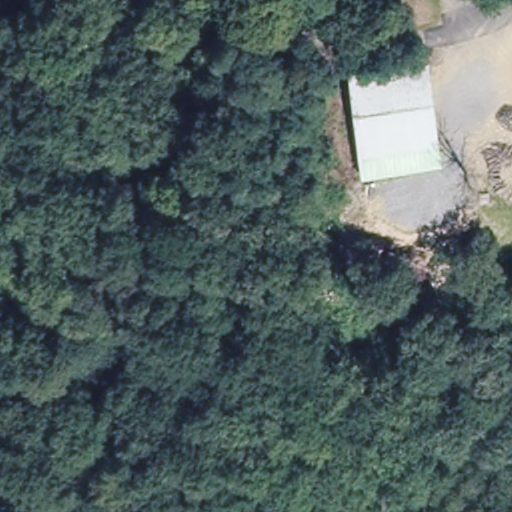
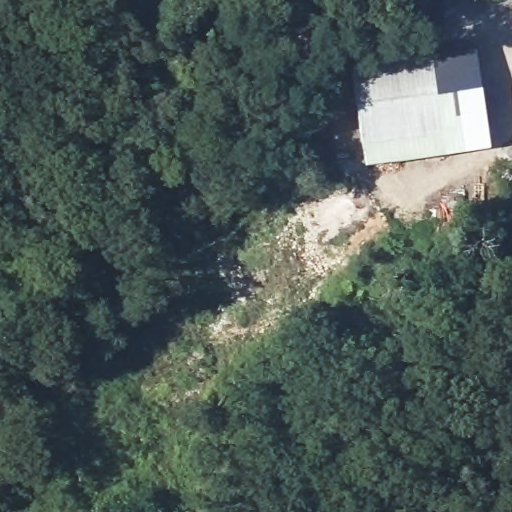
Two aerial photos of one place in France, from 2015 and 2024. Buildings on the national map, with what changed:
new [(430,56),(475,48),(490,151),(443,157),(430,56)]
unchanged [(430,56),(443,157),(362,169),(349,67),(430,56)]

